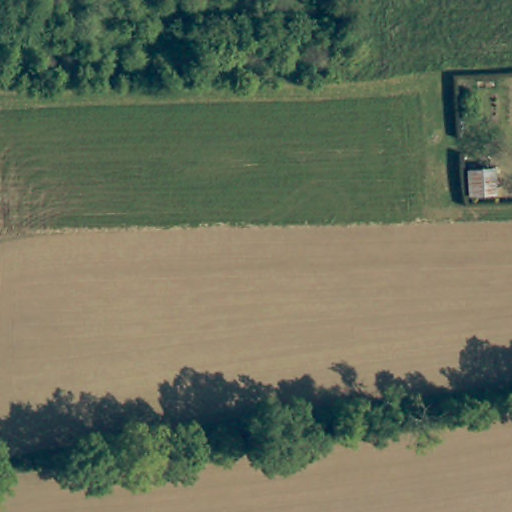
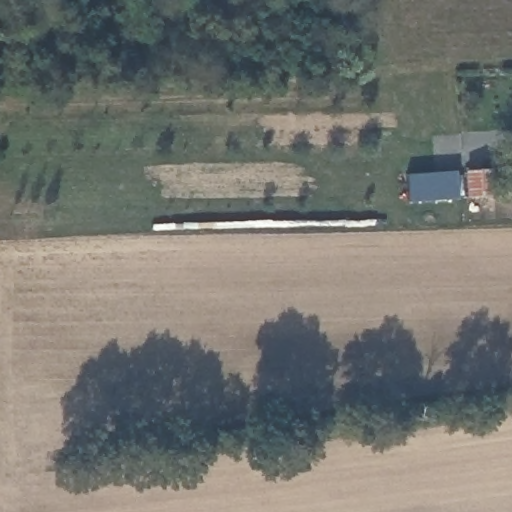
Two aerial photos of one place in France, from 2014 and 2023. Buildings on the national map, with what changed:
unchanged [(490,169),(492,195),(465,196),(462,171),(490,169)]
new [(456,199),(408,201),(406,174),(455,170),(456,199)]

